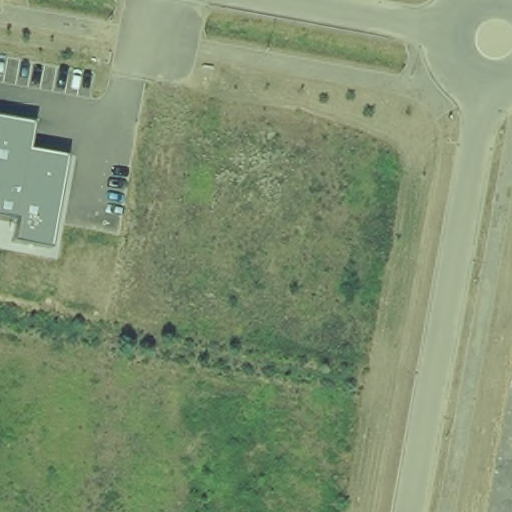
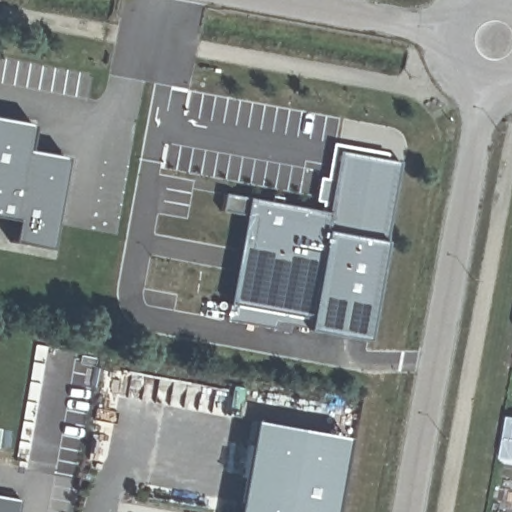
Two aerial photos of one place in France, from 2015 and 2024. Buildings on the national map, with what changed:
unchanged [(32,124),(27,151),(65,158),(49,250),(12,242),(15,221),(0,217),(0,119),(32,124)]
new [(316,209),(333,150),(388,150),(409,178),(387,348),(242,326),(251,206),(316,209)]
new [(349,456),(343,512),(252,512),(260,444),(349,456)]
new [(16,512),(0,512),(0,498),(18,502),(16,512)]

